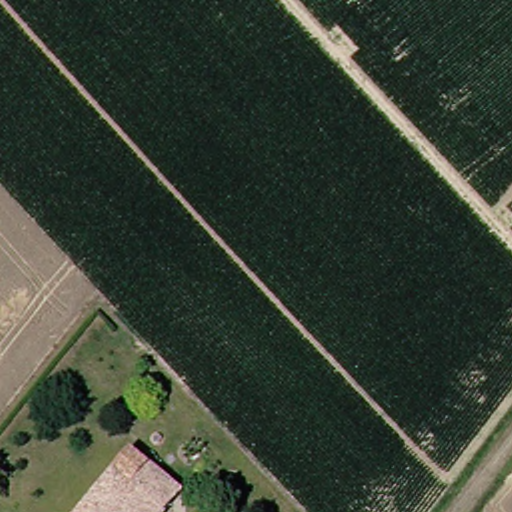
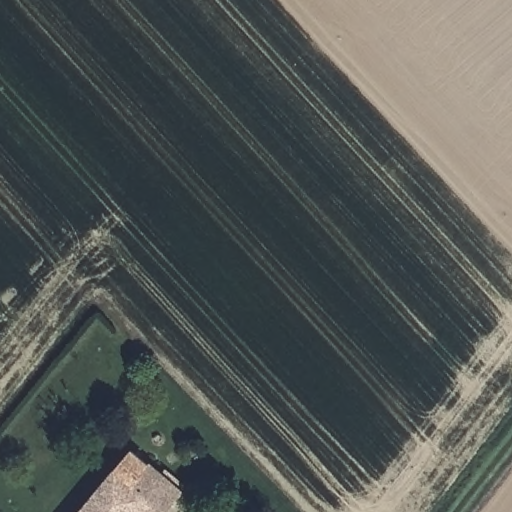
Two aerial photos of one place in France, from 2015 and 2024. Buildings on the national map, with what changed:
unchanged [(147,512),(134,501),(124,512),(66,512),(120,451),(167,493),(150,512),(147,512)]
unchanged [(147,512),(124,512),(134,501),(147,512)]

